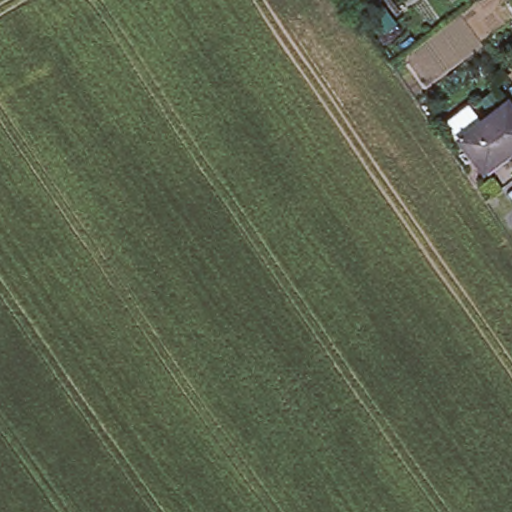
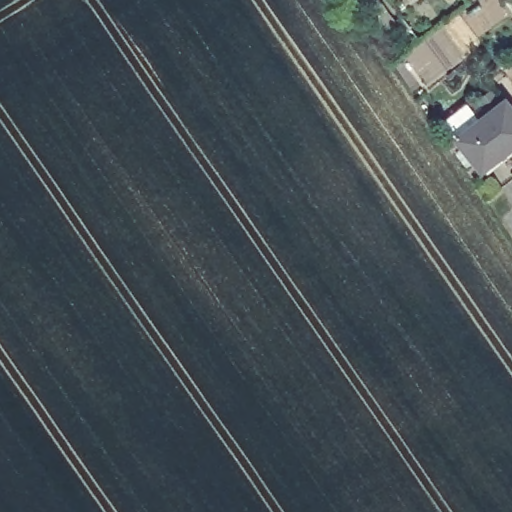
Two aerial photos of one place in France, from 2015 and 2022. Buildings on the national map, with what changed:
unchanged [(459,140),(448,125),(471,108),(482,124),(507,106),(512,113),(512,155),(485,175),(459,140)]

